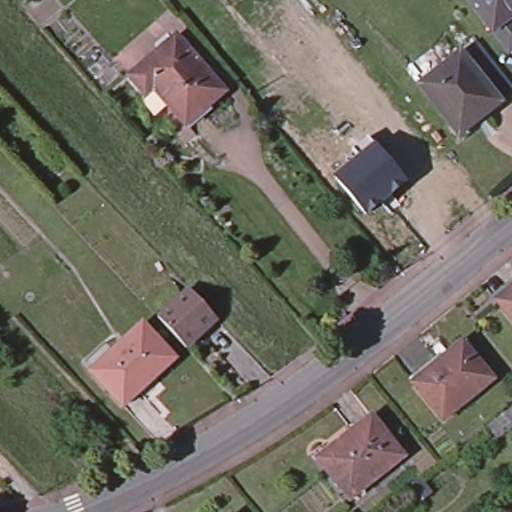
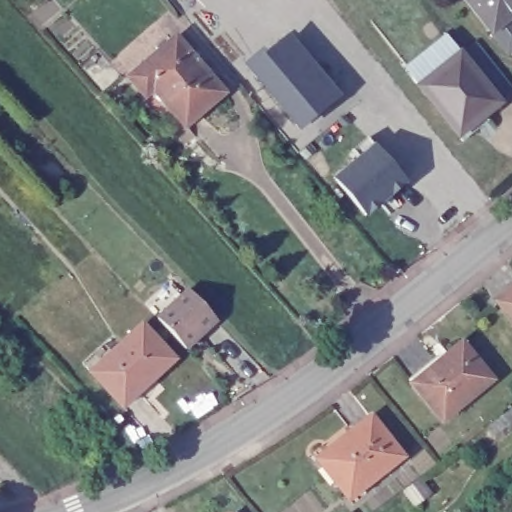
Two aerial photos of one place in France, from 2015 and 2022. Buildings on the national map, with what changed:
unchanged [(488,30),(465,0),(512,0),(512,12),(507,15),(512,21),(512,44),(504,51),(488,30)]
unchanged [(173,35),(222,91),(182,126),(150,88),(141,95),(124,76),(173,35)]
new [(245,66),(264,49),(266,53),(290,36),(340,98),(299,133),(245,66)]
unchanged [(477,48),(511,92),(495,105),(460,62),(477,48)]
unchanged [(430,64),(436,73),(455,56),(460,62),(495,105),(496,107),(480,119),(477,116),(452,136),(408,81),(430,64)]
demolished [(323,74),(330,82),(340,94),(327,104),(311,84),(323,74)]
unchanged [(400,182),(363,214),(334,180),(372,146),(400,182)]
unchanged [(492,302),(512,286),(512,326),(510,323),(492,302)]
unchanged [(180,345),(154,317),(185,288),(214,319),(196,335),(182,348),(180,345)]
unchanged [(170,358),(120,404),(87,369),(78,360),(102,339),(110,348),(138,323),(170,358)]
unchanged [(489,382),(439,422),(408,384),(458,343),(489,382)]
unchanged [(502,413),(511,406),(512,407),(512,425),(511,425),(493,438),(483,426),(502,413)]
unchanged [(400,459),(346,501),(314,461),(369,418),(400,459)]
unchanged [(414,478),(425,493),(410,503),(400,488),(414,478)]

